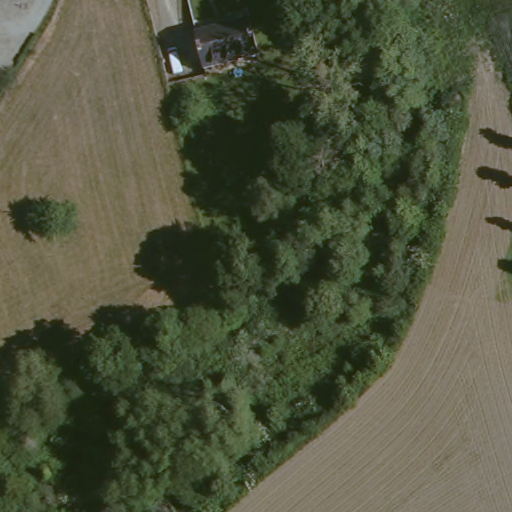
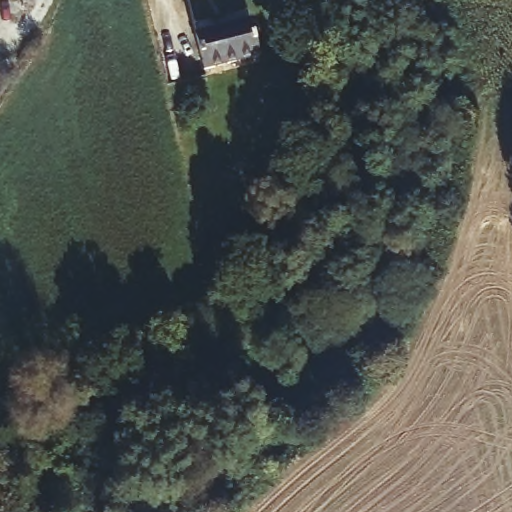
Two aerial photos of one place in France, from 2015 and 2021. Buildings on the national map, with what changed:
unchanged [(252,20),(259,53),(209,63),(202,31),(252,20)]

